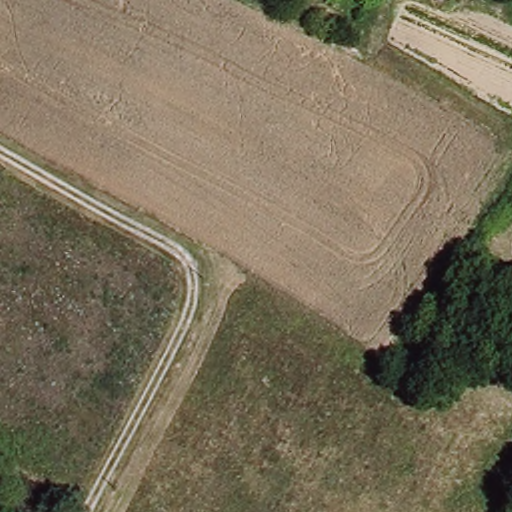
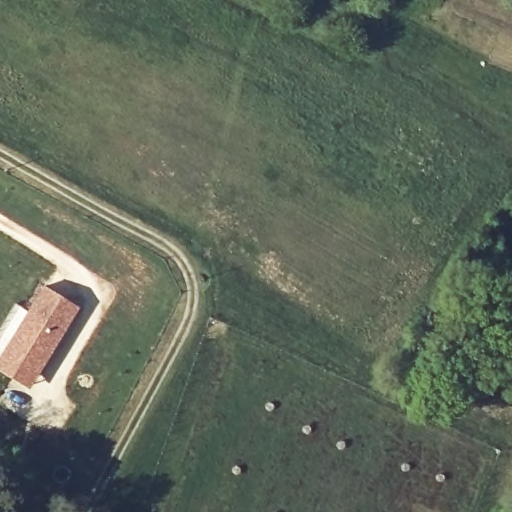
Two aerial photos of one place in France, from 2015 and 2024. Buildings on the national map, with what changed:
new [(26,314),(42,288),(77,309),(41,367),(0,342),(0,328),(13,306),(26,314)]
new [(28,388),(0,371),(0,342),(41,367),(28,388)]

